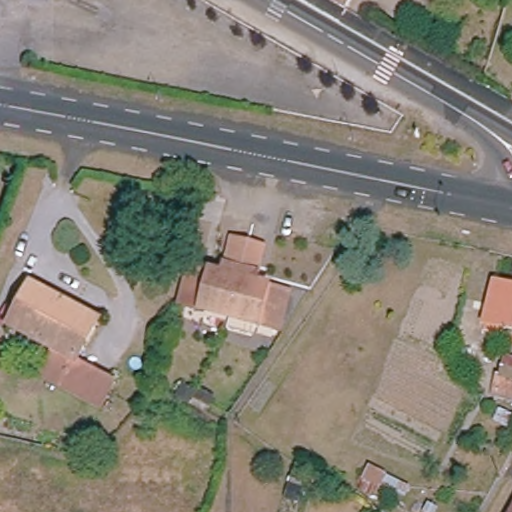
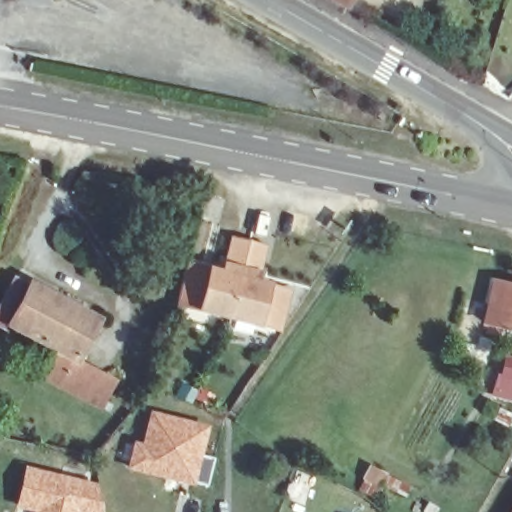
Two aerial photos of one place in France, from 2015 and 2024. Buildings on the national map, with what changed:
unchanged [(340,12),(319,0),(347,0),(340,12)]
unchanged [(184,267),(190,268),(221,276),(230,238),(262,246),(253,284),(286,292),(277,330),(228,318),(198,310),(180,306),(174,304),(184,267)]
unchanged [(6,325),(30,281),(96,320),(72,360),(56,352),(6,325)]
unchanged [(498,284),(512,286),(512,327),(489,321),(498,284)]
unchanged [(72,361),(111,382),(95,407),(41,377),(56,352),(72,361)]
unchanged [(502,377),(509,378),(512,363),(512,396),(499,393),(502,377)]
new [(134,440),(140,442),(150,409),(210,425),(203,454),(217,457),(209,489),(126,471),(134,440)]
new [(105,485),(105,487),(105,512),(31,512),(15,508),(25,465),(105,485)]

